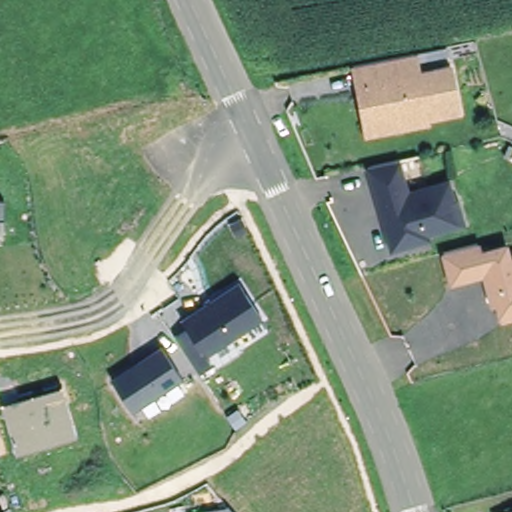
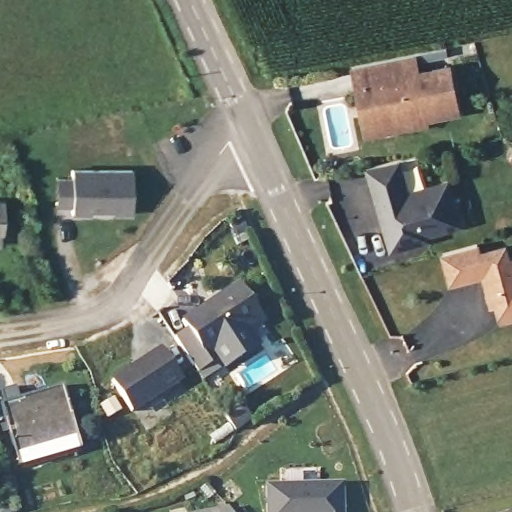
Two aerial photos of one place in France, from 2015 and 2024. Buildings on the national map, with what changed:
unchanged [(356,84),(352,65),(378,60),(392,57),(414,52),(418,71),(450,64),(459,111),(427,118),(426,114),(382,123),(365,126),(356,84)]
unchanged [(397,157),(406,189),(446,177),(453,198),(456,197),(463,219),(426,230),(428,235),(391,246),(366,164),(397,157)]
new [(71,170),(131,170),(131,213),(113,213),(113,207),(107,207),(107,210),(89,210),(89,213),(71,213),(71,205),(46,205),(45,179),(71,178),(71,170)]
unchanged [(2,199),(1,232),(0,232),(0,198),(2,199)]
unchanged [(478,244),(480,253),(505,247),(509,261),(512,260),(512,317),(502,320),(495,293),(490,295),(485,274),(452,283),(444,253),(466,247),(478,244)]
unchanged [(181,350),(174,339),(186,330),(181,322),(239,285),(261,320),(205,356),(210,365),(197,374),(196,374),(181,350)]
unchanged [(182,380),(133,411),(111,378),(161,345),(182,380)]
unchanged [(74,438),(13,455),(3,420),(0,409),(0,405),(18,400),(59,388),(74,438)]
new [(340,512),(265,512),(264,488),(339,485),(340,512)]
unchanged [(512,506),(512,512),(492,512),(491,512),(512,506)]
unchanged [(229,512),(216,512),(227,510),(229,512)]

